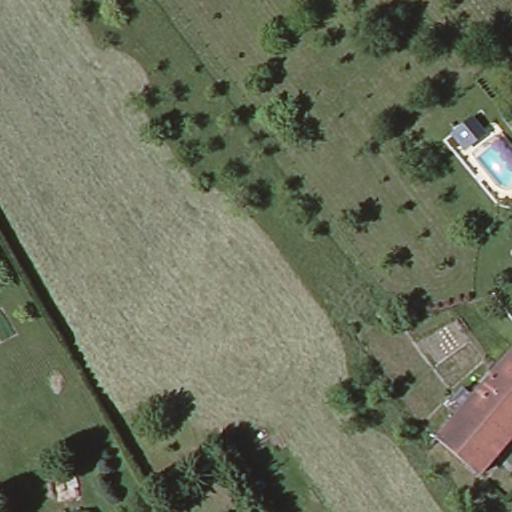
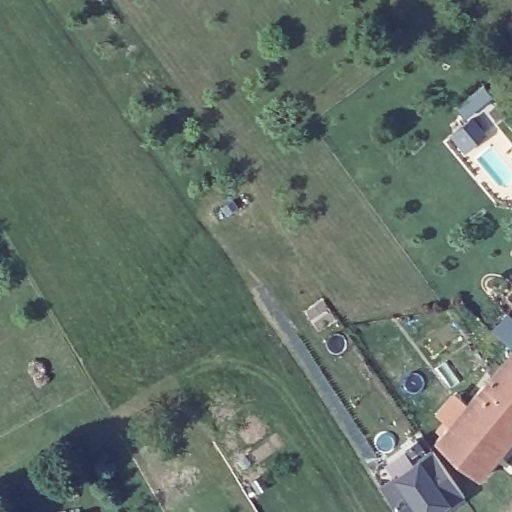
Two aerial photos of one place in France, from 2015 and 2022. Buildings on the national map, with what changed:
unchanged [(512,21),(512,30),(508,25),(512,21)]
new [(464,124),(477,140),(467,149),(454,132),(464,124)]
unchanged [(470,399),(512,348),(512,432),(512,433),(470,399)]
unchanged [(470,399),(512,433),(479,472),(437,437),(470,399)]
new [(380,483),(395,475),(421,456),(433,447),(467,497),(443,512),(400,512),(380,483)]

